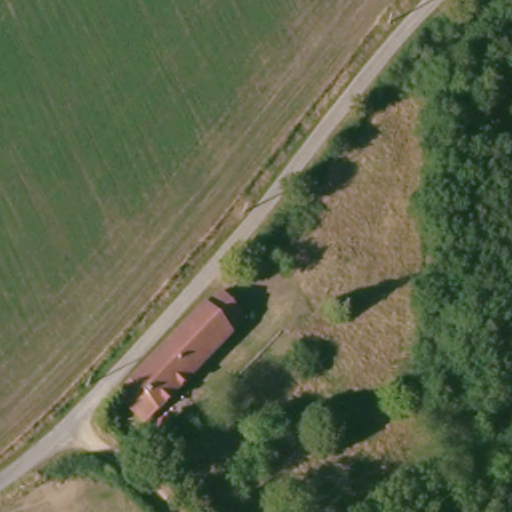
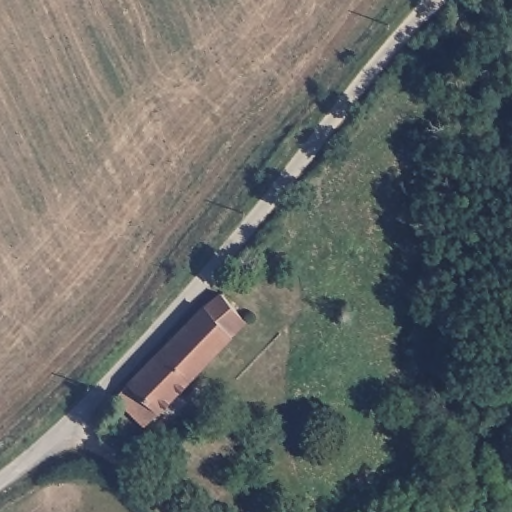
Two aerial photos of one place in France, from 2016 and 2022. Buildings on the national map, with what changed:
unchanged [(243,317),(137,428),(112,404),(141,371),(217,291),(243,317)]

